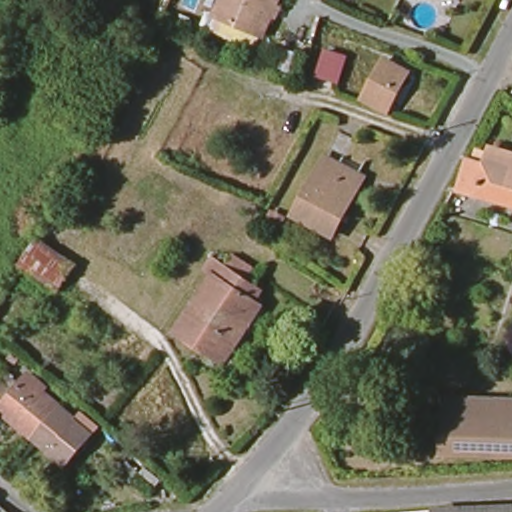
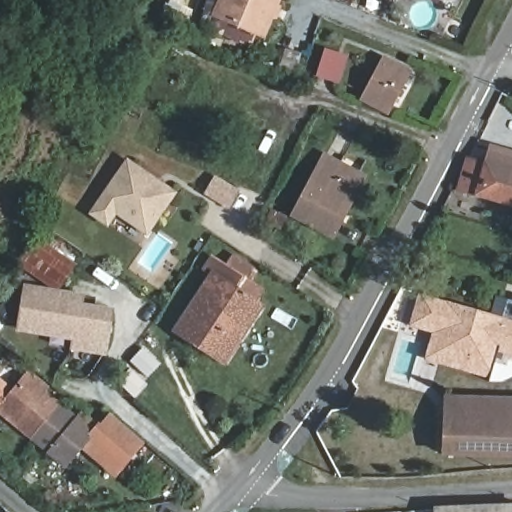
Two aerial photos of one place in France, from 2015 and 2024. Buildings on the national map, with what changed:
unchanged [(279,9),(284,10),(278,23),(273,21),(258,50),(210,30),(222,0),(283,0),(279,9)]
unchanged [(348,59),(340,86),(320,80),(330,53),(348,59)]
unchanged [(411,76),(403,92),(399,91),(389,110),(367,101),(385,64),(411,76)]
unchanged [(490,147),(512,154),(512,205),(460,191),(465,167),(470,159),(485,165),(490,147)]
unchanged [(363,176),(330,233),(294,214),(325,157),(363,176)]
new [(147,237),(116,216),(108,228),(88,214),(127,158),(177,192),(147,237)]
unchanged [(77,251),(61,277),(22,255),(39,230),(77,251)]
unchanged [(227,269),(235,256),(256,270),(250,281),(265,293),(259,303),(266,306),(225,367),(173,336),(212,276),(202,273),(211,258),(227,269)]
new [(106,356),(70,350),(71,340),(18,332),(24,285),(85,294),(84,303),(115,308),(106,356)]
new [(432,334),(408,326),(418,294),(490,314),(495,296),(512,301),(512,305),(508,319),(512,320),(512,356),(496,352),(485,378),(423,360),(432,334)]
unchanged [(0,413),(0,382),(11,391),(26,371),(49,389),(45,392),(57,402),(30,437),(0,413)]
unchanged [(512,455),(443,455),(445,397),(512,398),(512,455)]
unchanged [(62,462),(30,437),(57,402),(75,417),(80,410),(95,423),(62,462)]
new [(115,479),(80,449),(109,413),(145,443),(115,479)]
unchanged [(512,512),(433,512),(512,507),(512,512)]

